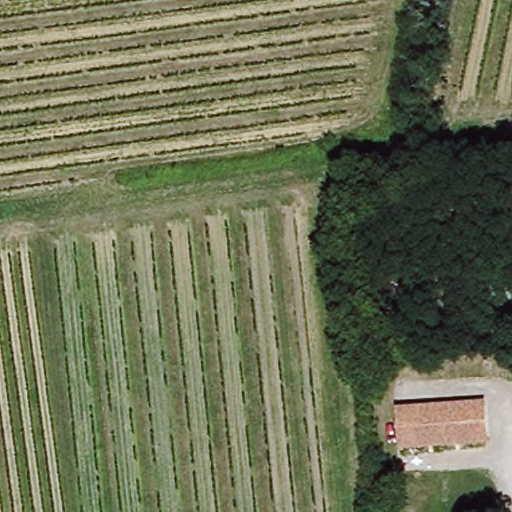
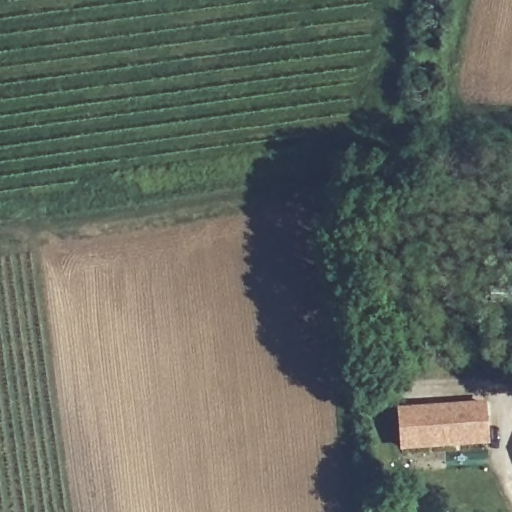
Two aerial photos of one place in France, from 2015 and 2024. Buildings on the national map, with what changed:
unchanged [(484,439),(404,443),(402,406),(485,401),(484,439)]

